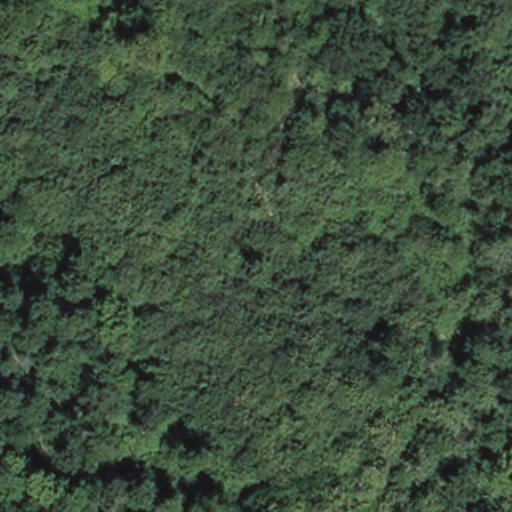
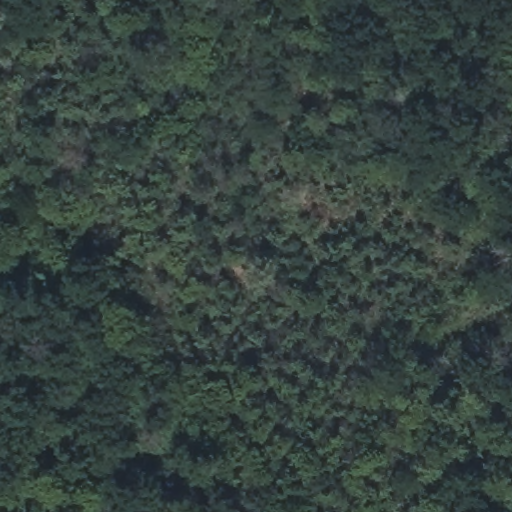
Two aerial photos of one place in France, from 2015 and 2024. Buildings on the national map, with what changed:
[]

